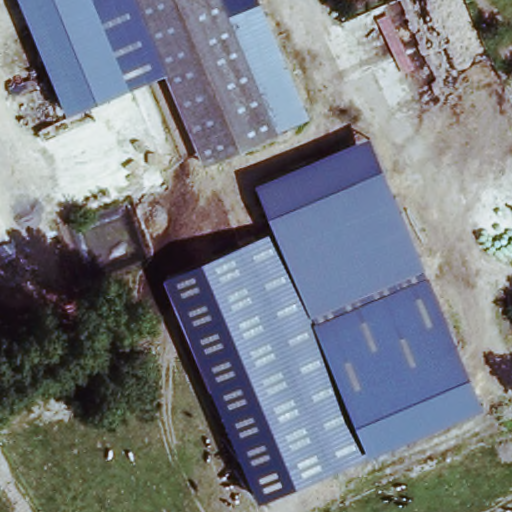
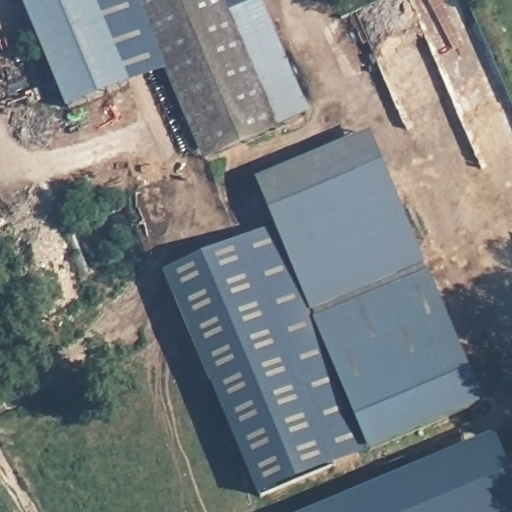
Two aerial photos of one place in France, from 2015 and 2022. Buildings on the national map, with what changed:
unchanged [(71,106),(26,0),(96,0),(130,81),(71,106)]
unchanged [(139,0),(222,0),(277,131),(207,161),(167,68),(139,0)]
unchanged [(222,0),(254,0),(308,117),(277,131),(222,0)]
unchanged [(284,240),(279,227),(258,179),(374,131),(490,400),(372,451),(284,240)]
unchanged [(284,240),(372,451),(259,500),(164,273),(279,227),(284,240)]
new [(512,471),(512,512),(317,512),(497,437),(512,471)]

